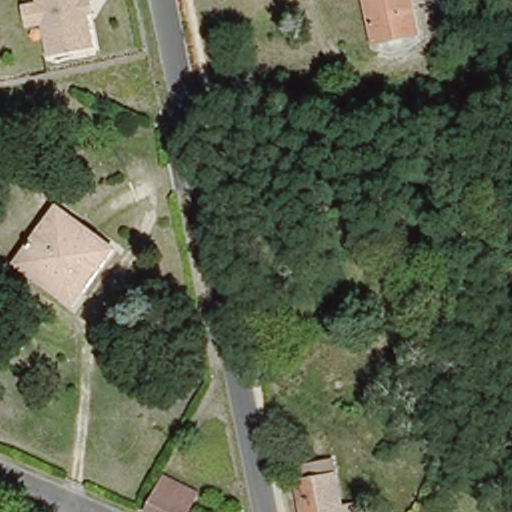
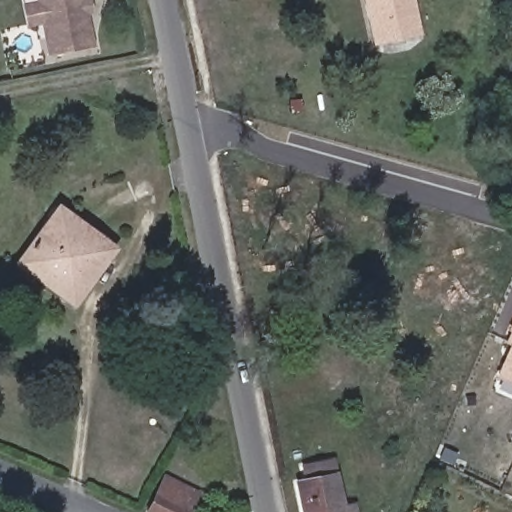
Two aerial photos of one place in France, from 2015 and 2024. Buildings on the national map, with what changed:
unchanged [(89,14),(94,47),(47,56),(42,25),(27,28),(22,5),(37,2),(37,0),(91,0),(94,13),(89,14)]
unchanged [(372,42),(364,0),(413,0),(418,33),(372,42)]
unchanged [(35,276),(16,262),(56,204),(114,245),(100,266),(74,305),(35,276)]
new [(503,380),(497,377),(511,346),(506,344),(512,331),(507,330),(512,320),(512,396),(498,390),(503,380)]
unchanged [(295,479),(305,477),(302,463),(330,458),(335,486),(344,484),(347,498),(335,500),(337,508),(349,506),(350,512),(301,512),(295,479)]
unchanged [(188,512),(152,512),(164,480),(195,492),(188,512)]
unchanged [(368,507),(377,512),(366,512),(368,507)]

